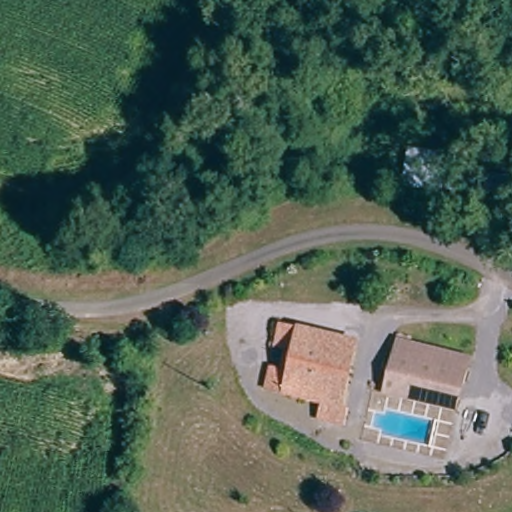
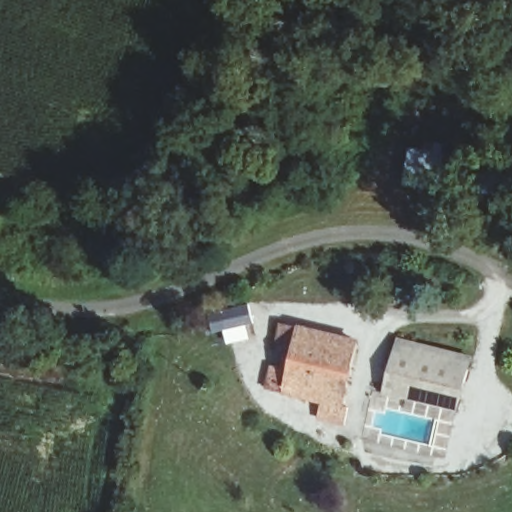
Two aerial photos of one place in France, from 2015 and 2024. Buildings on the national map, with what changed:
unchanged [(433,253),(431,270),(367,256),(370,240),(433,253)]
unchanged [(350,428),(337,425),(322,422),(326,402),(264,390),(271,369),(283,372),(290,352),(276,350),(283,324),(358,343),(340,406),(355,410),(350,428)]
unchanged [(452,413),(430,407),(387,397),(397,353),(400,342),(423,350),(426,343),(471,357),(452,413)]

